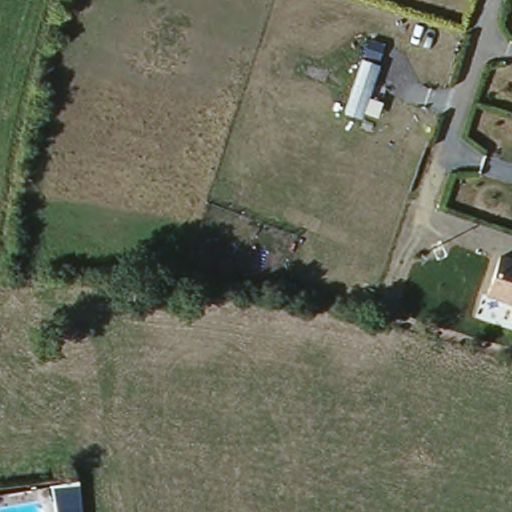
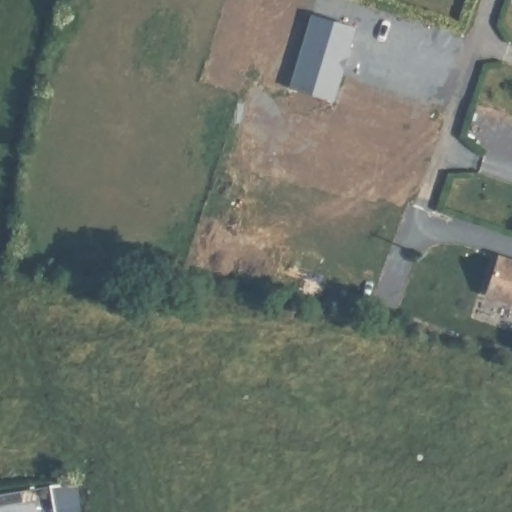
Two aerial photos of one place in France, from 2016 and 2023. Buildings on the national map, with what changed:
new [(338,83),(342,85),(333,100),(292,89),(312,23),(308,22),(311,16),(355,29),(338,83)]
unchanged [(386,45),(369,98),(383,103),(377,119),(363,114),(362,121),(342,115),(366,39),(386,45)]
unchanged [(512,261),(512,308),(486,302),(497,257),(512,261)]
new [(81,485),(84,512),(59,512),(55,488),(81,485)]

